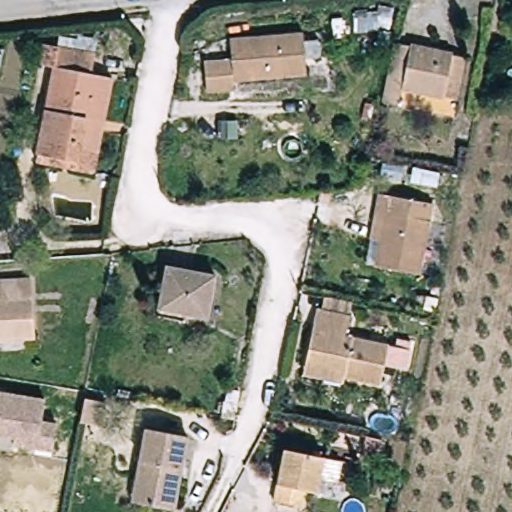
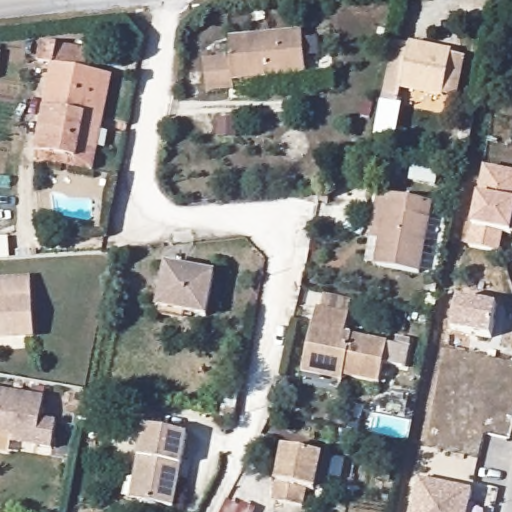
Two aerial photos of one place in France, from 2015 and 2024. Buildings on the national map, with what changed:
unchanged [(237,80),(239,101),(211,104),(207,60),(235,56),(234,37),(305,31),(309,75),(237,80)]
unchanged [(53,65),(38,63),(41,42),(93,50),(90,71),(102,73),(96,116),(86,115),(79,160),(40,155),(53,65)]
unchanged [(400,105),(386,103),(396,46),(466,59),(458,99),(405,90),(400,105)]
unchanged [(79,160),(86,115),(96,116),(102,73),(111,75),(97,171),(38,163),(40,155),(79,160)]
new [(498,233),(498,251),(467,245),(471,227),(478,195),(483,166),(512,172),(512,230),(511,235),(498,233)]
unchanged [(386,195),(438,206),(423,277),(379,267),(390,216),(382,215),(386,195)]
unchanged [(166,268),(215,276),(207,319),(158,311),(166,268)]
unchanged [(33,282),(39,338),(0,343),(0,286),(33,282)]
new [(491,337),(451,330),(457,297),(498,305),(491,337)]
unchanged [(304,372),(307,360),(318,308),(346,315),(342,332),(387,342),(379,379),(345,372),(343,380),(304,372)]
unchanged [(19,440),(0,437),(0,393),(50,400),(46,421),(62,423),(58,450),(41,448),(18,445),(19,440)]
unchanged [(116,406),(111,430),(89,425),(95,402),(116,406)]
unchanged [(245,424),(235,422),(238,407),(249,410),(245,424)]
unchanged [(142,462),(149,430),(190,438),(175,511),(143,505),(133,503),(142,462)]
unchanged [(306,512),(303,512),(279,507),(289,456),(325,463),(318,496),(309,494),(306,512)]
new [(470,512),(413,512),(419,481),(475,492),(470,512)]

